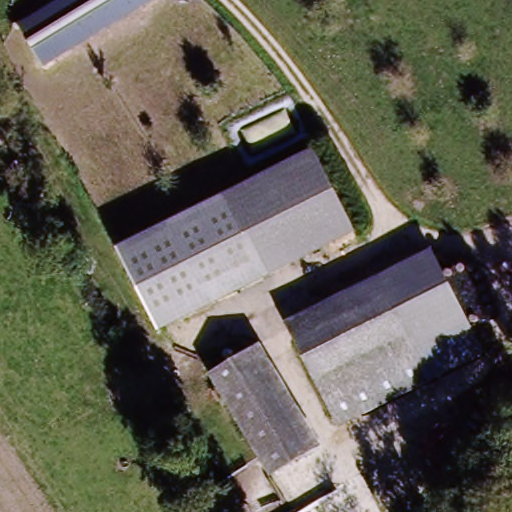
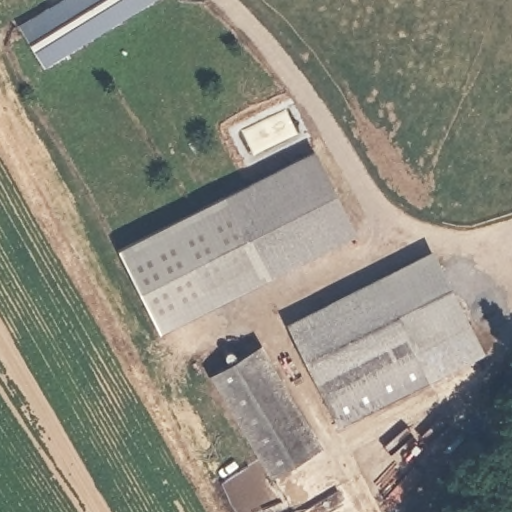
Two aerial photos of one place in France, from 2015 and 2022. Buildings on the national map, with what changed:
unchanged [(63,0),(148,0),(48,69),(21,29),(63,0)]
unchanged [(225,198),(311,146),(356,222),(270,274),(225,198)]
unchanged [(235,216),(270,274),(155,333),(115,249),(225,198),(235,216)]
unchanged [(478,338),(338,420),(290,337),(430,256),(478,338)]
unchanged [(323,438),(307,448),(240,355),(255,344),(323,438)]
unchanged [(307,448),(273,473),(207,378),(240,355),(307,448)]

